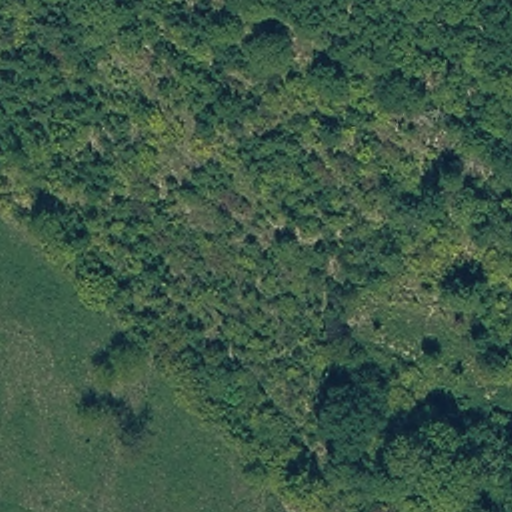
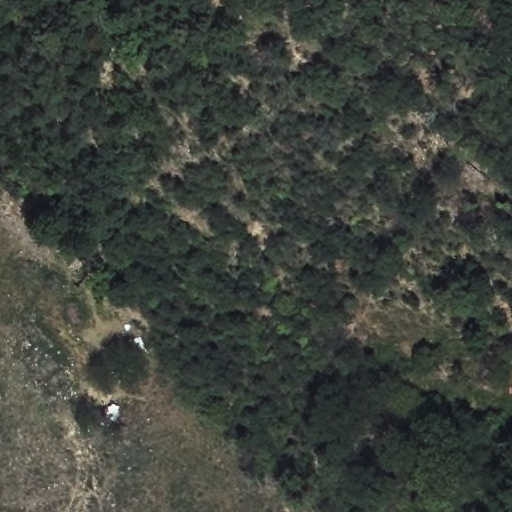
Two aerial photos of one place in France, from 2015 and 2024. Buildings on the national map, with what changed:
[]

